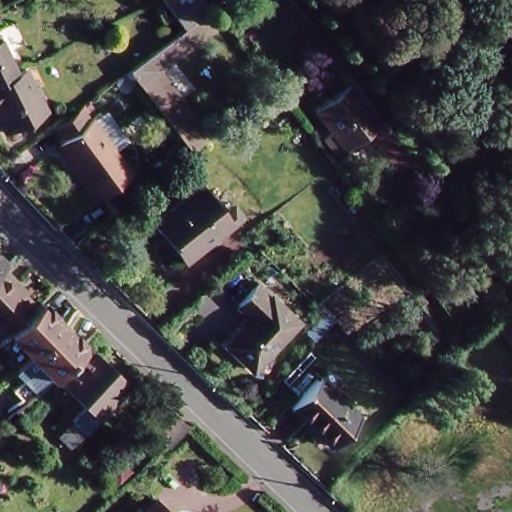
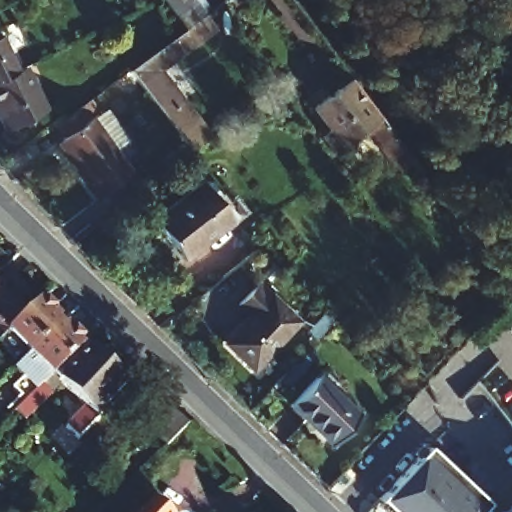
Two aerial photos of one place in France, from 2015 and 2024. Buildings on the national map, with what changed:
unchanged [(181,21),(171,9),(164,0),(203,0),(205,4),(195,11),(205,25),(193,34),(165,55),(157,60),(207,127),(188,142),(128,60),(146,47),(163,35),(173,27),(177,25),(181,21)]
unchanged [(0,74),(0,46),(10,69),(0,74)]
unchanged [(40,105),(0,125),(0,74),(10,69),(20,64),(40,105)]
unchanged [(390,137),(378,146),(373,141),(372,142),(360,127),(335,145),(306,105),(344,76),(390,137)]
unchanged [(102,211),(96,203),(70,169),(76,165),(61,145),(88,124),(129,179),(135,186),(102,211)]
unchanged [(432,191),(454,220),(441,230),(381,150),(394,141),(432,191)]
unchanged [(357,177),(362,185),(352,193),(346,185),(357,177)]
unchanged [(145,217),(195,180),(215,207),(225,199),(235,210),(225,220),(175,257),(145,217)]
unchanged [(3,259),(0,262),(0,255),(3,259)]
unchanged [(0,329),(0,262),(3,259),(16,271),(11,276),(33,300),(7,325),(1,330),(0,329)]
unchanged [(255,278),(295,315),(251,361),(225,335),(249,310),(235,297),(255,278)]
unchanged [(38,295),(61,317),(30,347),(7,325),(33,300),(38,295)]
demolished [(512,306),(512,350),(491,323),(512,306)]
unchanged [(84,340),(25,394),(13,382),(25,370),(15,360),(30,347),(61,317),(84,340)]
unchanged [(85,338),(126,377),(94,410),(96,414),(68,441),(56,429),(85,400),(61,378),(23,413),(15,405),(25,394),(84,340),(85,338)]
unchanged [(315,368),(330,382),(332,380),(360,405),(331,436),(316,421),(319,418),(308,408),(305,411),(289,395),(315,368)]
unchanged [(177,433),(163,446),(141,420),(161,400),(185,426),(177,433)]
new [(378,502),(427,445),(490,512),(389,512),(378,502)]
unchanged [(170,512),(133,512),(151,494),(170,512)]
new [(512,507),(512,512),(503,512),(512,507)]

